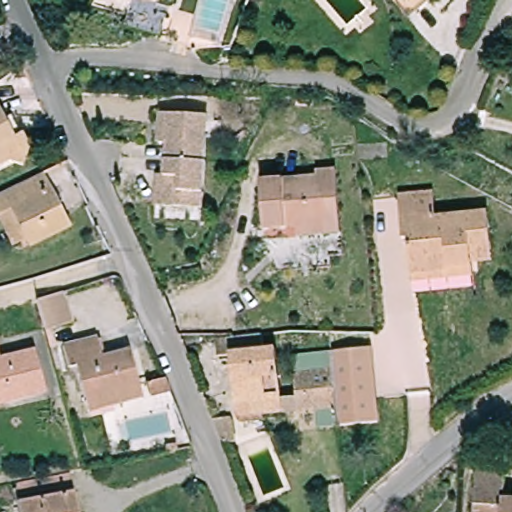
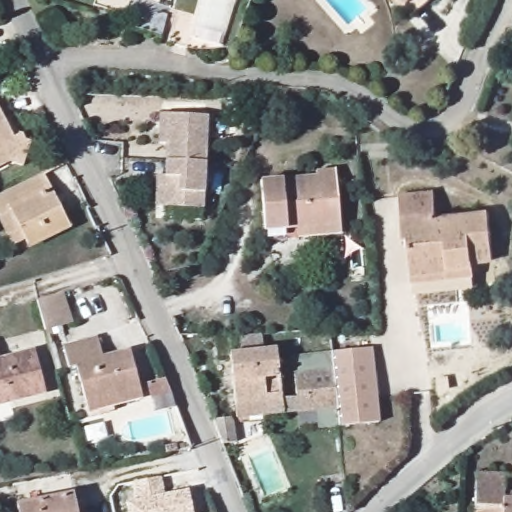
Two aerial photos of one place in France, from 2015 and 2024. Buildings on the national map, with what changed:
unchanged [(407,0),(438,0),(419,15),(407,0)]
unchanged [(161,179),(169,179),(168,147),(161,147),(159,115),(167,115),(209,115),(211,209),(170,210),(163,211),(161,179)]
unchanged [(10,136),(18,132),(21,139),(29,140),(23,166),(1,161),(0,162),(0,118),(3,125),(10,136)]
unchanged [(312,169),(329,168),(337,222),(264,230),(258,180),(313,176),(312,169)]
unchanged [(0,195),(43,175),(68,230),(24,248),(21,241),(9,247),(0,226),(0,195)]
unchanged [(439,217),(491,212),(496,259),(477,261),(477,265),(449,270),(450,275),(412,279),(404,224),(398,224),(394,195),(436,190),(439,217)]
unchanged [(84,399),(75,363),(68,365),(63,343),(97,336),(102,356),(131,350),(142,399),(121,403),(86,410),(84,399)]
unchanged [(234,420),(232,405),(232,404),(227,361),(213,362),(212,344),(216,338),(226,338),(226,345),(253,338),(261,338),(263,357),(273,356),(277,396),(278,402),(279,417),(234,420)]
unchanged [(44,392),(9,400),(0,403),(0,358),(33,350),(44,392)]
unchanged [(336,370),(381,366),(390,437),(345,442),(336,370)]
unchanged [(295,392),(293,374),(331,369),(336,410),(298,416),(295,392)]
new [(154,413),(146,383),(166,377),(174,407),(154,413)]
unchanged [(476,506),(479,467),(509,470),(512,441),(512,442),(512,512),(476,512),(476,506)]
unchanged [(10,486),(66,473),(75,512),(16,512),(10,486)]
new [(125,501),(136,498),(133,482),(162,476),(165,493),(188,488),(193,512),(128,512),(125,501)]

